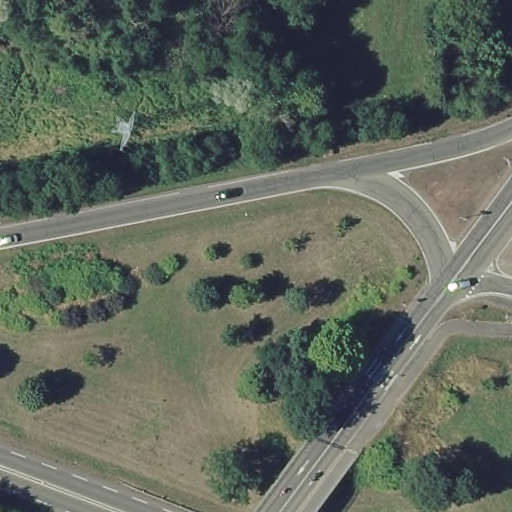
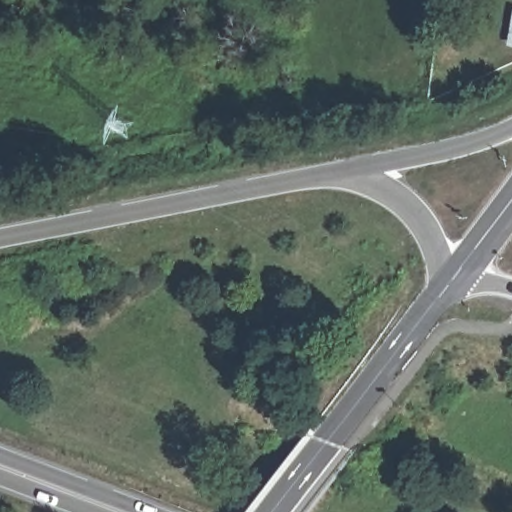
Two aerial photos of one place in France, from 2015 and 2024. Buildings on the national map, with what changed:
unchanged [(512,34),(512,46),(510,46),(512,34)]

